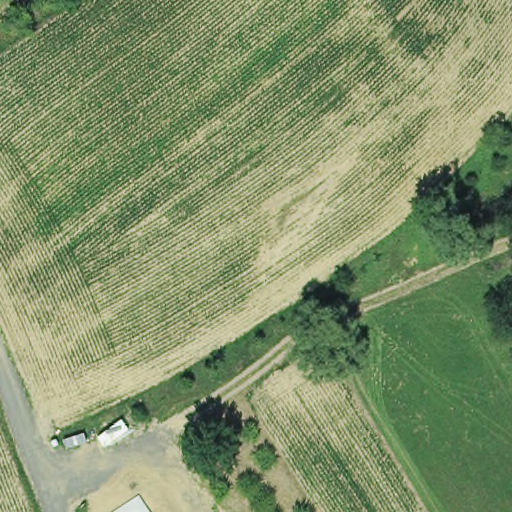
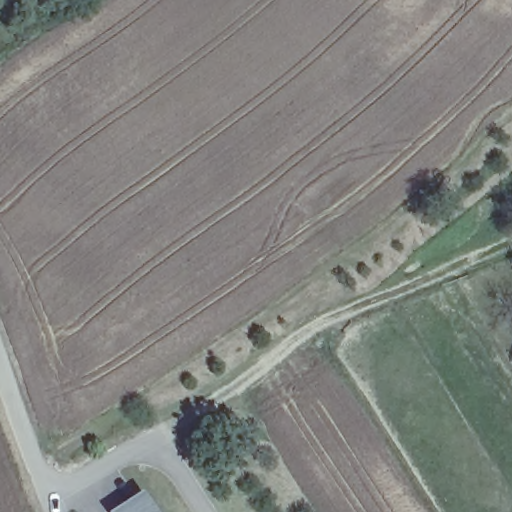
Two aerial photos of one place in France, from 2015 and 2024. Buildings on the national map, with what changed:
unchanged [(139,495),(150,512),(112,512),(139,495)]

